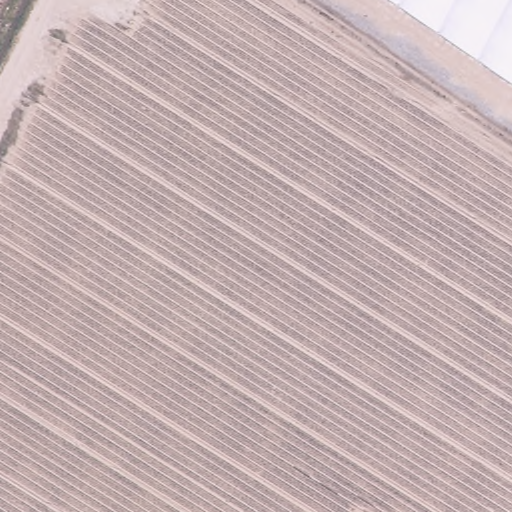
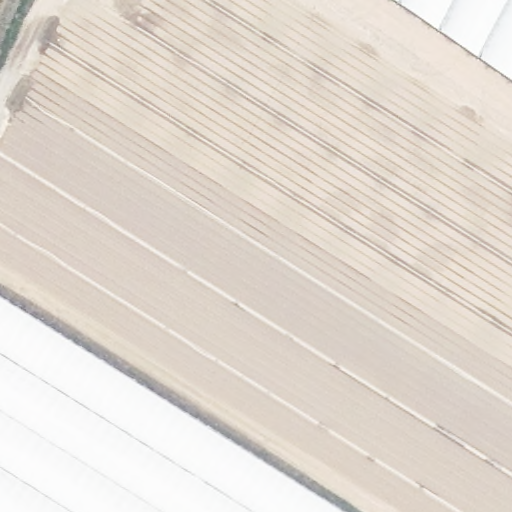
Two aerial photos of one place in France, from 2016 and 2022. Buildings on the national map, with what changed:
unchanged [(391,0),(512,0),(512,83),(391,0)]
new [(0,512),(0,299),(341,512),(0,512)]

